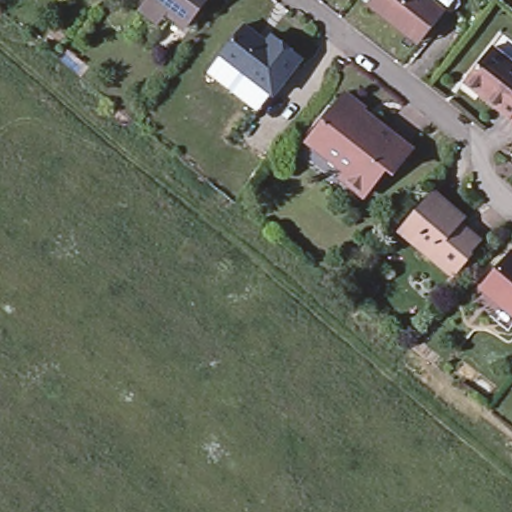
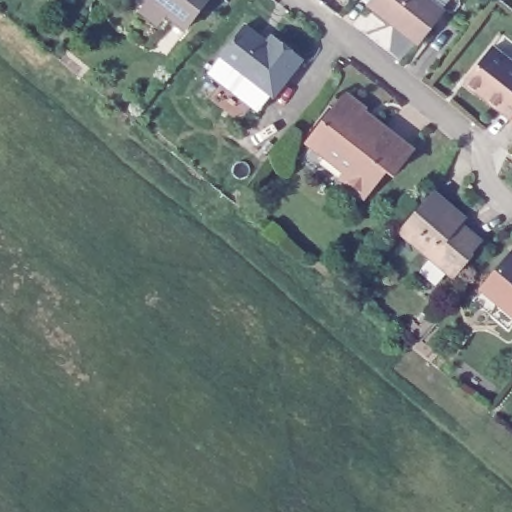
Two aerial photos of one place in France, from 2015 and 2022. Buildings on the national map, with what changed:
unchanged [(142,0),(199,0),(178,28),(142,0)]
unchanged [(368,0),(427,0),(442,11),(419,40),(415,45),(394,29),(364,5),(368,0)]
unchanged [(223,57),(247,25),(268,42),(274,35),(304,59),(274,96),(272,95),(223,57)]
unchanged [(488,43),(512,61),(512,108),(508,114),(474,88),(461,79),(466,72),(488,43)]
unchanged [(258,112),(210,74),(223,57),(272,95),(258,112)]
unchanged [(347,97),(363,110),(358,116),(380,133),(384,129),(410,150),(391,175),(384,170),(363,196),(342,180),(350,170),(313,140),(347,97)]
unchanged [(460,216),(455,223),(475,240),(462,255),(464,257),(449,275),(421,251),(397,230),(411,214),(431,191),(460,216)]
unchanged [(507,251),(512,256),(512,314),(478,285),(507,251)]

